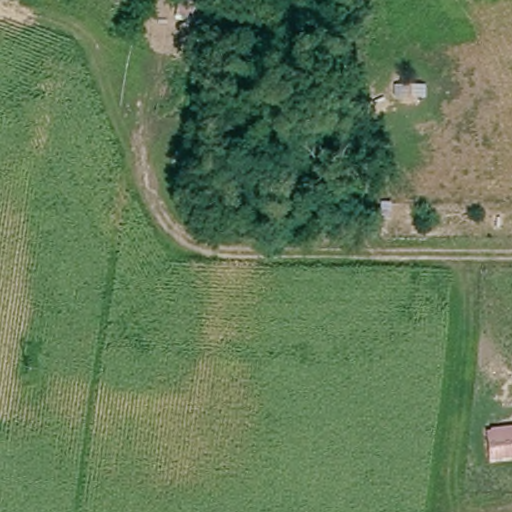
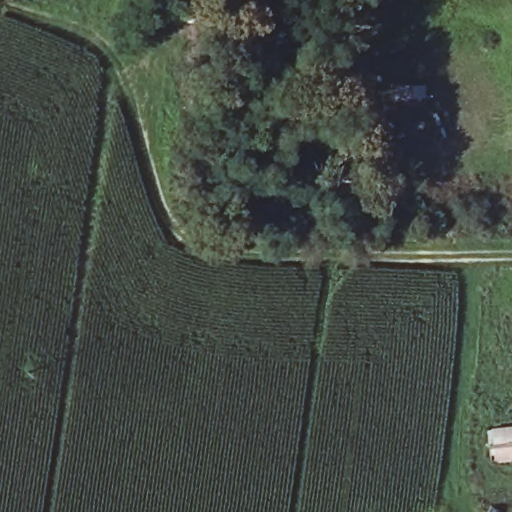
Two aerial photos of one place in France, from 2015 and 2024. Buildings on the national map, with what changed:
unchanged [(512,427),(512,460),(489,462),(487,430),(512,427)]

